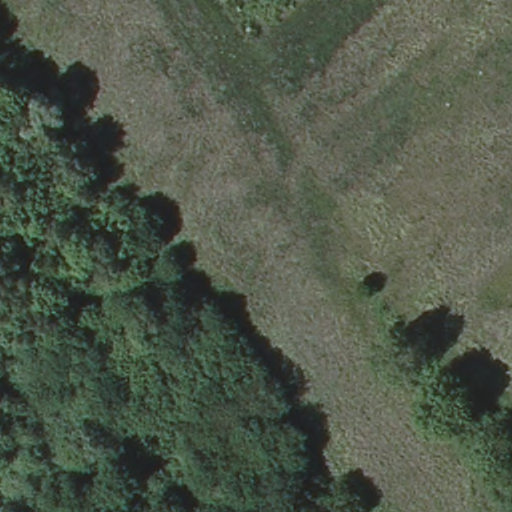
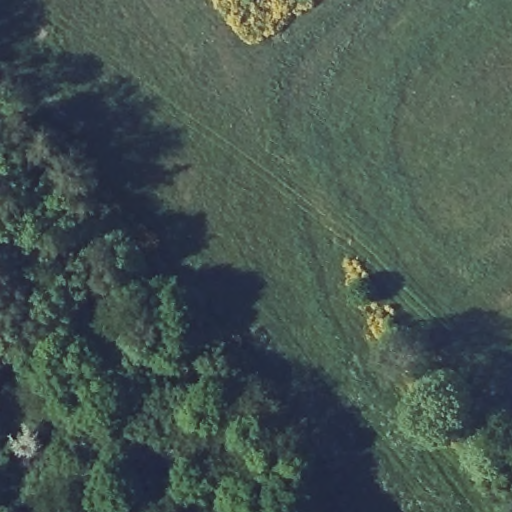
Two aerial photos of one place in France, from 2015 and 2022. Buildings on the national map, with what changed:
unchanged [(120,303),(130,316),(121,336),(103,323),(120,303)]

